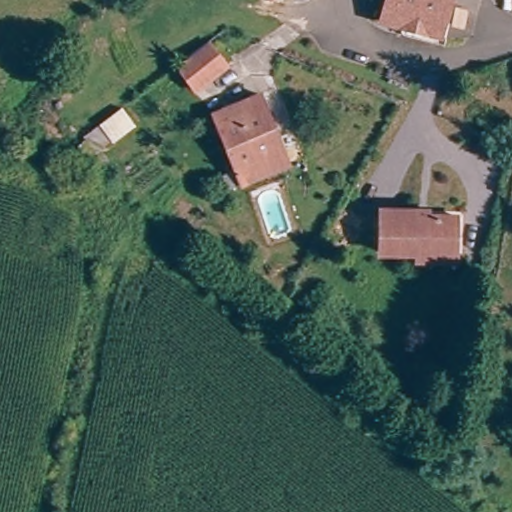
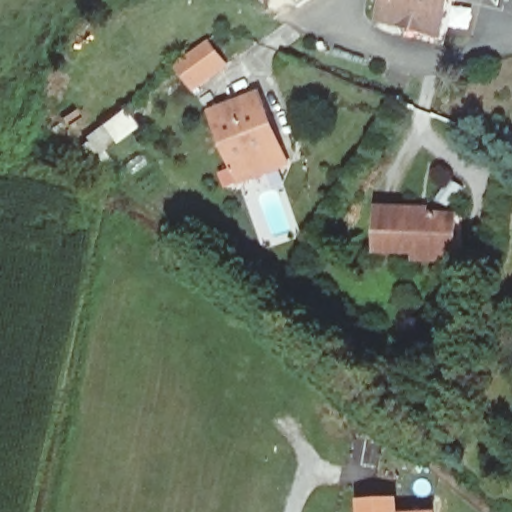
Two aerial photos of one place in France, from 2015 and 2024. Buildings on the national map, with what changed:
unchanged [(384,0),(454,0),(447,35),(379,21),(384,0)]
unchanged [(208,39),(227,63),(195,88),(176,63),(208,39)]
unchanged [(288,161),(252,176),(239,184),(208,114),(257,91),(266,111),(255,118),(269,150),(281,145),(288,161)]
unchanged [(434,261),(419,260),(419,255),(378,254),(378,211),(418,212),(419,218),(427,219),(427,216),(459,216),(459,249),(459,261),(434,261)]
new [(400,497),(401,512),(358,512),(358,500),(400,497)]
new [(437,511),(437,512),(413,512),(437,511)]

